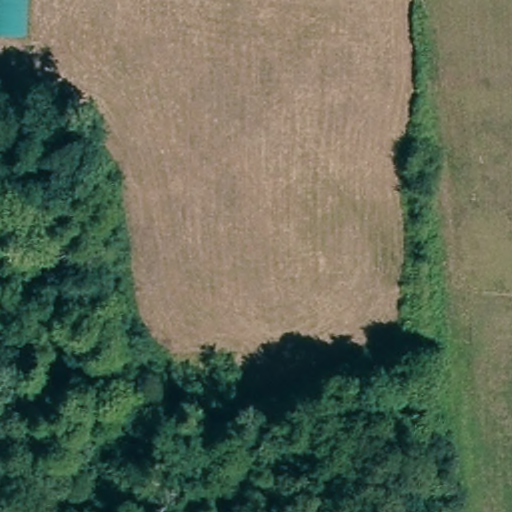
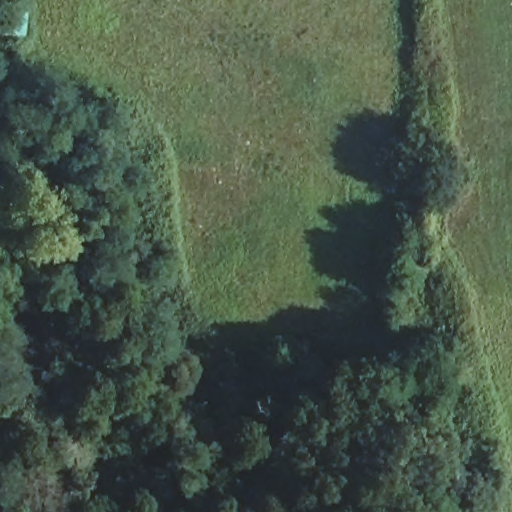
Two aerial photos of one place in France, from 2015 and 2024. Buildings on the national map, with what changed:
unchanged [(25,36),(0,35),(0,0),(28,0),(25,36)]

